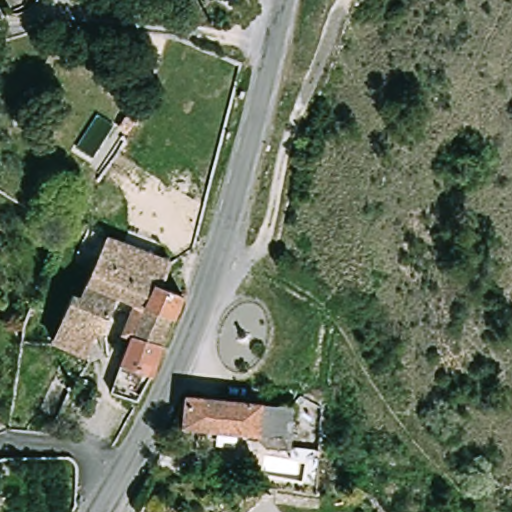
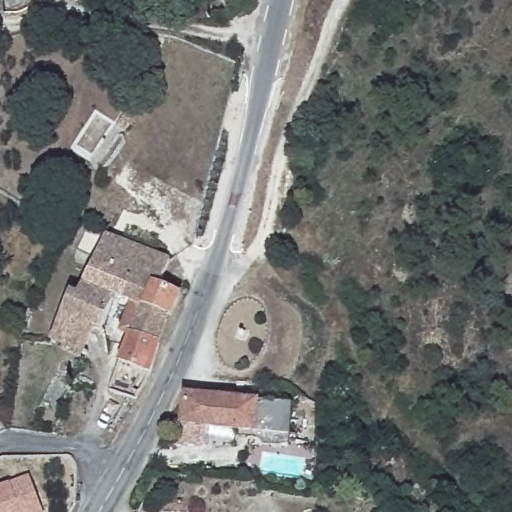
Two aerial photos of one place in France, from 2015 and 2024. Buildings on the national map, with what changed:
unchanged [(110,234),(167,258),(158,283),(124,271),(96,261),(108,234),(110,234)]
unchanged [(93,327),(84,347),(54,337),(73,290),(82,293),(96,261),(124,271),(111,301),(98,329),(93,327)]
unchanged [(131,335),(123,332),(131,308),(111,301),(124,271),(158,283),(177,291),(171,315),(166,313),(157,343),(131,335)]
unchanged [(148,373),(134,397),(114,391),(122,362),(131,335),(157,343),(148,373)]
unchanged [(199,388),(265,402),(257,432),(185,418),(188,386),(199,388)]
unchanged [(295,407),(285,450),(265,446),(269,435),(257,432),(265,402),(295,407)]
new [(43,512),(0,512),(0,486),(9,482),(28,476),(43,512)]

